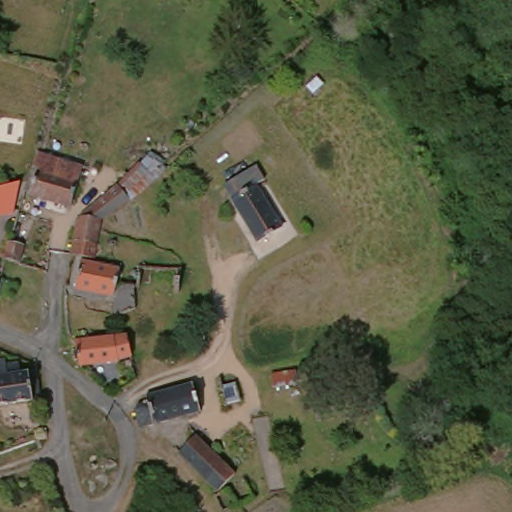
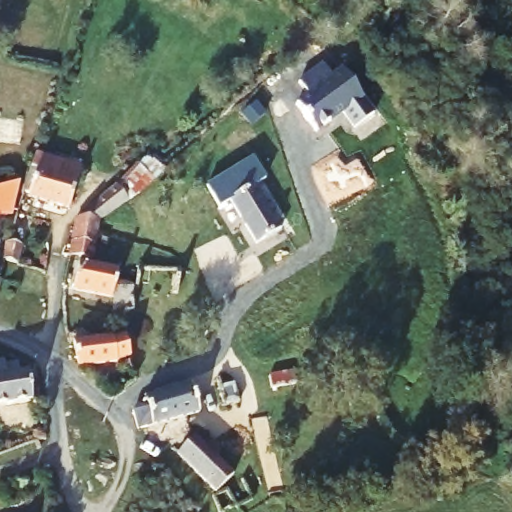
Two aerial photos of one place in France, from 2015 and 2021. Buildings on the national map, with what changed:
new [(309,91),(301,77),(326,61),(335,75),(345,68),(374,113),(354,126),(344,109),(316,127),(308,115),(307,116),(304,111),(304,110),(298,99),(309,91)]
new [(257,101),(266,112),(254,123),(244,113),(257,101)]
unchanged [(78,170),(66,217),(24,205),(27,191),(34,159),(39,161),(78,170)]
unchanged [(65,257),(67,241),(70,219),(131,167),(144,182),(91,230),(89,246),(86,261),(65,257)]
unchanged [(269,191),(259,197),(283,235),(259,250),(221,191),(256,170),(269,191)]
unchanged [(16,221),(0,224),(0,196),(22,192),(16,221)]
unchanged [(129,313),(120,317),(111,315),(115,303),(71,295),(76,267),(116,274),(116,284),(134,287),(129,313)]
unchanged [(123,346),(126,360),(115,360),(116,372),(76,375),(71,350),(116,347),(123,346)]
unchanged [(3,372),(19,373),(19,378),(34,379),(31,409),(0,409),(0,366),(4,367),(3,372)]
unchanged [(289,384),(291,399),(269,401),(268,386),(273,385),(289,384)]
unchanged [(195,420),(136,434),(136,415),(145,413),(144,402),(191,391),(195,420)]
unchanged [(198,441),(239,482),(221,499),(180,458),(198,441)]

